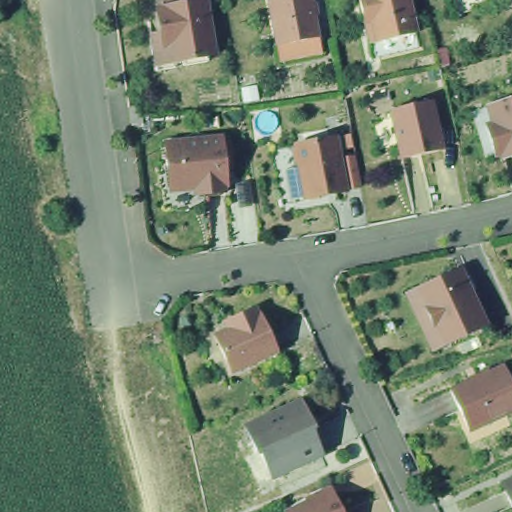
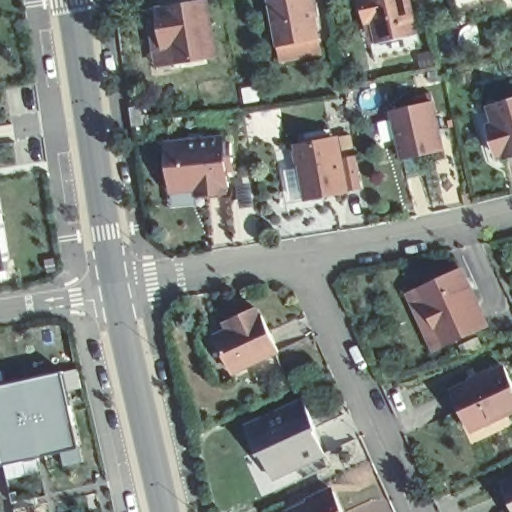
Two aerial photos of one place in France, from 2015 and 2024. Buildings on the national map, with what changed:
unchanged [(207,0),(216,55),(174,63),(171,48),(165,49),(157,9),(207,0)]
unchanged [(360,0),(409,0),(417,33),(378,42),(371,44),(366,22),(360,0)]
unchanged [(314,6),(323,53),(284,60),(275,14),(314,6)]
unchanged [(431,96),(442,144),(402,154),(390,106),(431,96)]
unchanged [(505,158),(504,153),(497,155),(487,126),(495,124),(489,106),(512,99),(512,155),(505,158)]
unchanged [(141,105),(144,124),(133,126),(130,108),(141,105)]
unchanged [(169,163),(166,138),(223,132),(224,139),(231,138),(232,156),(233,164),(227,165),(229,181),(226,182),(226,188),(197,191),(197,184),(177,186),(171,187),(169,163)]
unchanged [(330,139),(334,160),(336,160),(351,158),(356,187),(342,189),(342,190),(304,198),(297,167),(292,163),(290,151),(294,145),(330,139)]
new [(12,257),(0,258),(0,175),(1,175),(12,257)]
unchanged [(412,295),(422,290),(422,289),(465,269),(491,326),(459,341),(437,351),(412,295)]
unchanged [(232,329),(228,320),(256,309),(259,316),(261,315),(278,351),(232,372),(216,336),(232,329)]
unchanged [(507,414),(470,430),(461,410),(452,391),(471,382),(470,380),(489,371),(490,373),(504,367),(512,384),(512,411),(507,414)]
new [(74,448),(0,462),(0,384),(57,373),(74,448)]
unchanged [(303,400),(316,428),(313,429),(324,454),(273,478),(260,449),(257,451),(246,427),(303,400)]
unchanged [(507,491),(506,491),(506,490),(506,489),(504,484),(512,480),(512,503),(507,491)]
unchanged [(329,481),(343,512),(285,512),(281,503),(329,481)]

